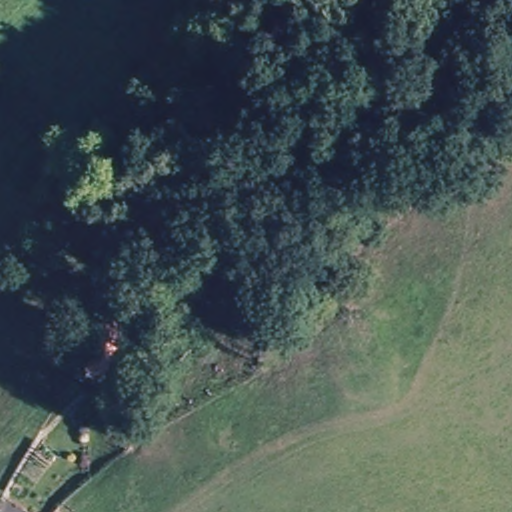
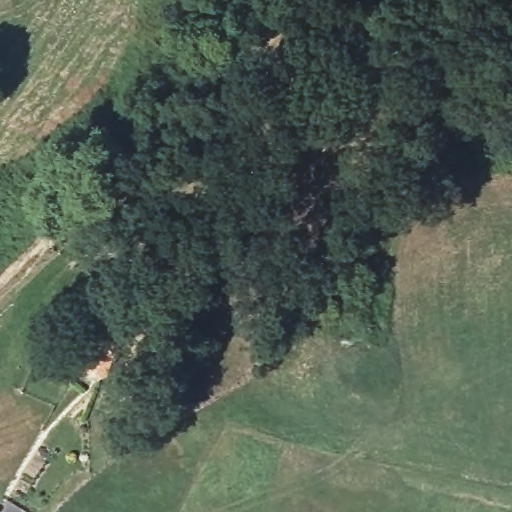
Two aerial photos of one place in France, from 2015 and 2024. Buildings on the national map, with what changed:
unchanged [(109,384),(85,377),(103,317),(125,324),(109,384)]

